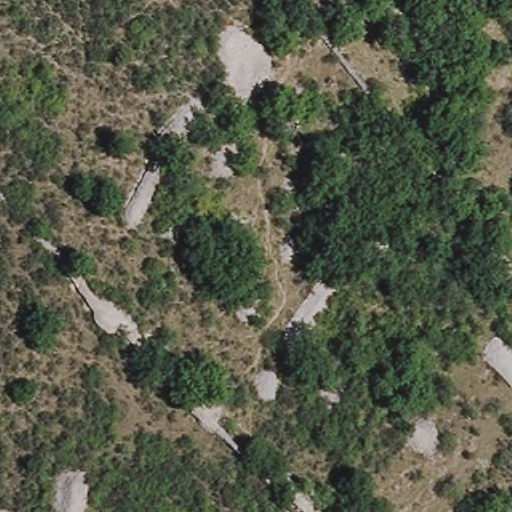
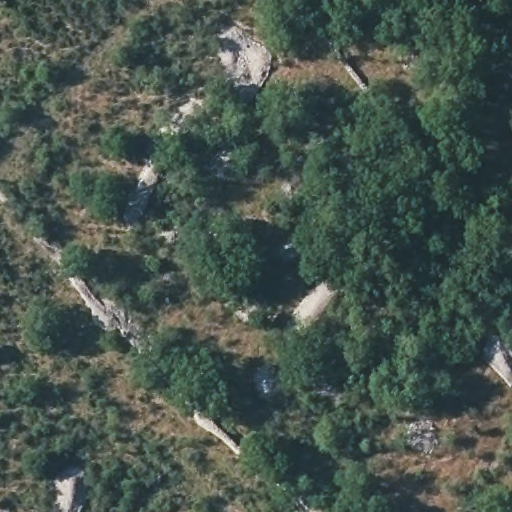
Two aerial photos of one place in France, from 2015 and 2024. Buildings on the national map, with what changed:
[]

